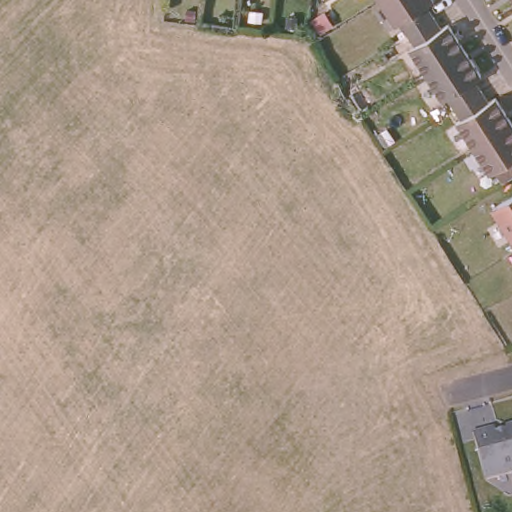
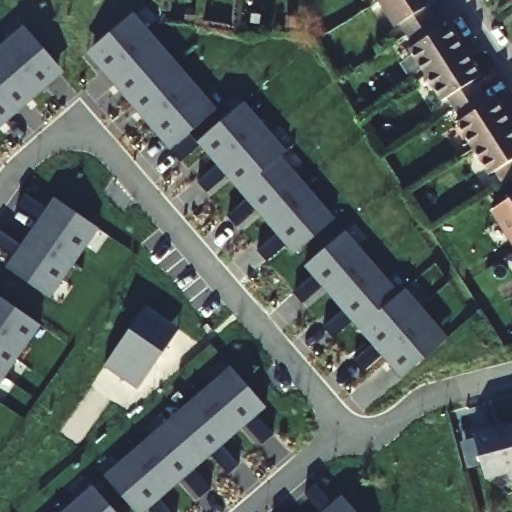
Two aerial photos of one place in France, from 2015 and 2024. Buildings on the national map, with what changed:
unchanged [(376,0),(379,0),(377,2),(376,0)]
unchanged [(404,29),(395,16),(387,20),(377,2),(379,0),(426,0),(432,12),(404,29)]
unchanged [(505,0),(512,0),(512,11),(505,0)]
new [(177,61),(167,69),(195,100),(204,92),(217,109),(177,144),(164,128),(157,134),(100,68),(107,62),(94,47),(134,12),(177,61)]
unchanged [(432,12),(440,26),(447,22),(461,47),(417,75),(402,48),(410,42),(404,29),(432,12)]
new [(9,39),(24,25),(59,66),(44,79),(49,86),(0,128),(0,61),(15,47),(9,39)]
unchanged [(477,75),(472,79),(479,91),(449,109),(440,96),(432,101),(417,75),(461,47),(477,75)]
unchanged [(479,91),(487,104),(492,101),(506,125),(464,151),(449,127),(457,122),(449,109),(479,91)]
new [(252,122),(257,117),(287,150),(281,155),(336,217),(295,253),(279,235),(285,229),(262,202),(255,207),(239,189),(245,184),(232,169),(226,175),(197,142),(239,106),(252,122)]
unchanged [(512,135),(512,177),(495,187),(487,175),(481,180),(464,151),(506,125),(512,135)]
unchanged [(512,192),(512,265),(504,252),(480,212),(512,192)]
new [(55,197),(99,228),(50,297),(6,267),(20,247),(27,252),(48,222),(40,217),(55,197)]
new [(435,322),(427,330),(440,346),(403,377),(374,344),(380,338),(368,324),(362,330),(345,311),(352,306),(328,278),(322,284),(305,266),(345,231),(400,293),(405,288),(435,322)]
new [(20,335),(30,342),(0,385),(0,296),(32,318),(20,335)]
new [(138,388),(122,377),(131,362),(115,352),(147,306),(179,329),(138,388)]
new [(265,406),(247,422),(240,416),(213,440),(219,446),(184,476),(179,470),(150,493),(157,500),(142,512),(135,512),(104,476),(230,366),(265,406)]
unchanged [(484,426),(485,431),(512,424),(512,489),(509,490),(504,470),(475,478),(462,432),(484,426)]
new [(92,485),(115,512),(60,512),(92,485)]
new [(325,511),(343,495),(357,512),(325,512),(325,511)]

